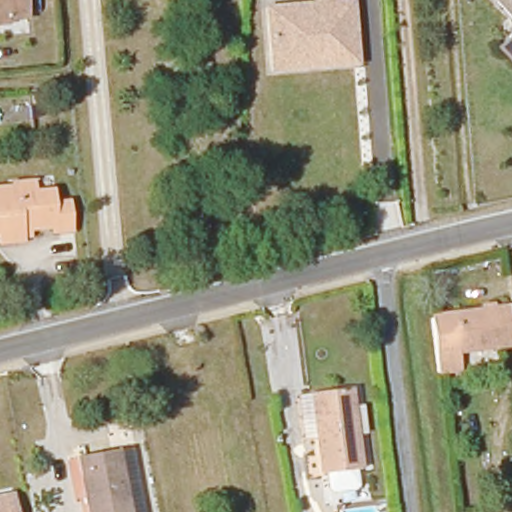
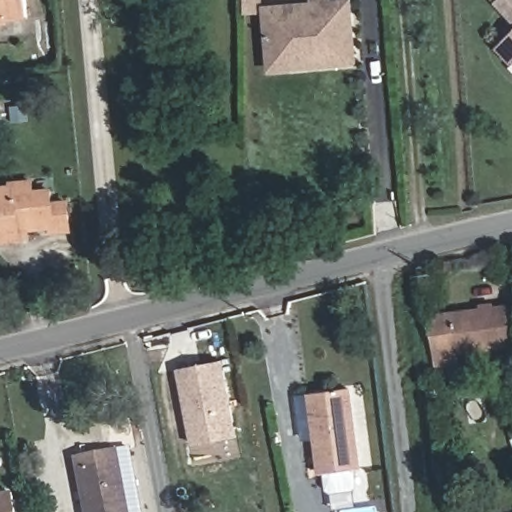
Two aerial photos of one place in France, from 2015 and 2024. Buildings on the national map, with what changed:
unchanged [(0,21),(0,0),(25,0),(27,17),(0,21)]
unchanged [(271,67),(265,5),(323,0),(350,0),(354,44),(355,59),(305,64),(271,67)]
unchanged [(495,1),(496,0),(512,0),(512,19),(495,1)]
unchanged [(506,36),(512,31),(512,59),(509,61),(495,46),(506,36)]
unchanged [(30,200),(50,199),(51,212),(66,210),(69,237),(51,239),(50,233),(19,237),(20,248),(0,250),(0,195),(10,194),(10,189),(28,187),(30,200)]
unchanged [(428,317),(505,309),(509,347),(455,353),(456,373),(435,376),(428,317)]
new [(219,359),(234,435),(191,443),(176,368),(219,359)]
unchanged [(352,391),(363,474),(360,474),(362,489),(358,496),(339,499),(331,494),(329,478),(325,479),(320,439),(306,442),(300,399),(314,397),(314,396),(352,391)]
unchanged [(78,454),(116,448),(127,445),(139,512),(89,512),(78,454)]
unchanged [(14,512),(0,512),(0,493),(10,492),(14,512)]

